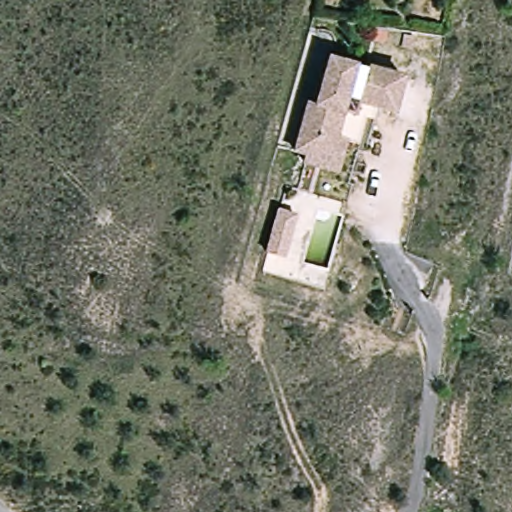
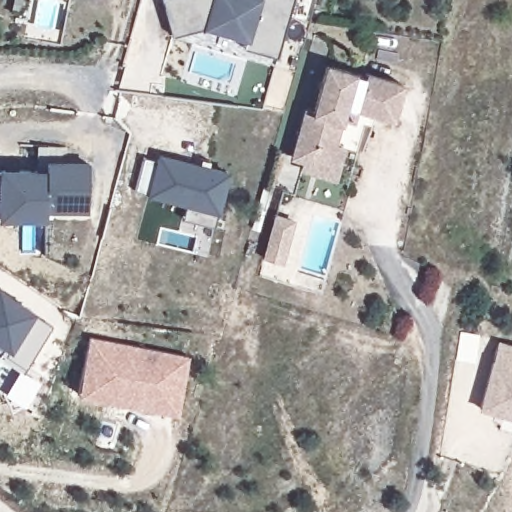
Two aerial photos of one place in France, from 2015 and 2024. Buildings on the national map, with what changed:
new [(292,0),(277,55),(246,47),(248,39),(202,27),(174,35),(164,0),(292,0)]
unchanged [(311,174),(311,165),(301,162),(311,115),(316,116),(327,67),(363,74),(364,69),(404,77),(395,115),(376,111),(372,126),(365,124),(358,149),(352,147),(342,180),(311,174)]
new [(144,157),(156,160),(158,155),(230,172),(220,215),(218,214),(215,225),(183,218),(186,206),(136,192),(144,157)]
new [(47,177),(47,167),(90,169),(89,214),(47,213),(47,223),(0,222),(0,176),(47,177)]
unchanged [(280,266),(262,262),(273,215),(291,220),(280,266)]
new [(54,330),(8,395),(0,389),(0,292),(54,330)]
new [(90,336),(189,355),(176,414),(79,395),(90,336)]
new [(512,345),(512,432),(501,430),(505,417),(480,411),(498,341),(512,345)]

